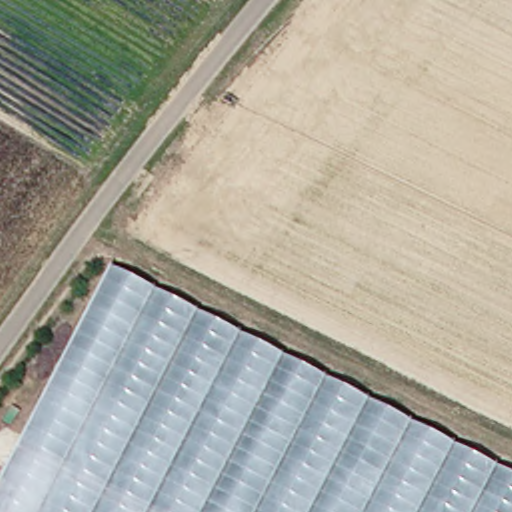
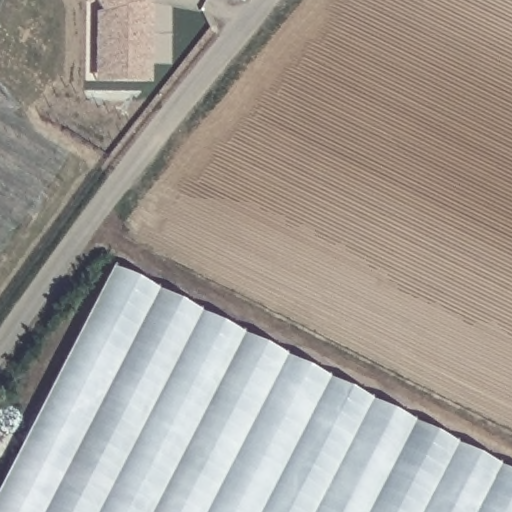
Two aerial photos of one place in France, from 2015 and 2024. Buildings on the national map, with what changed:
new [(87,5),(83,0),(94,0),(87,5)]
new [(96,76),(96,59),(95,33),(95,8),(100,8),(95,0),(139,0),(142,4),(146,4),(147,32),(147,58),(147,76),(96,76)]
unchanged [(512,471),(512,512),(0,512),(0,490),(114,266),(512,471)]

